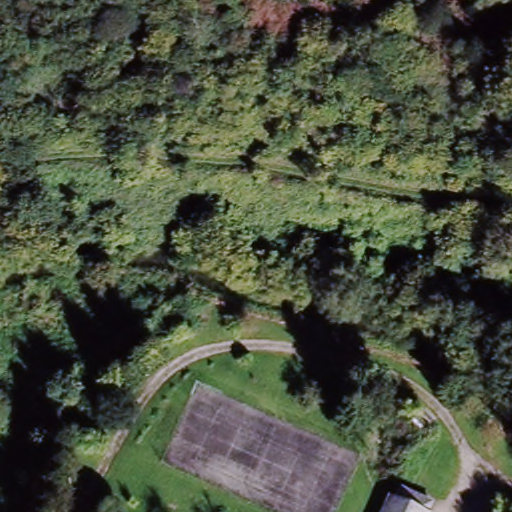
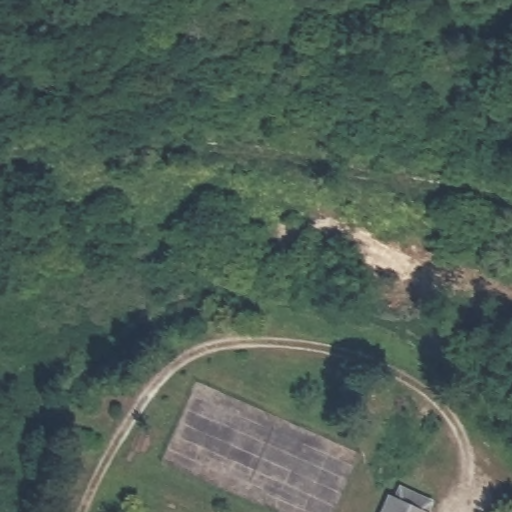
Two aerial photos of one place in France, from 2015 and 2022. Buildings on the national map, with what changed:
unchanged [(385,493),(432,512),(378,512),(385,493)]

